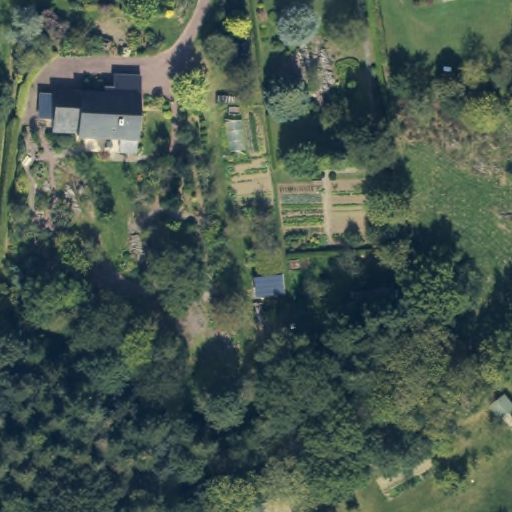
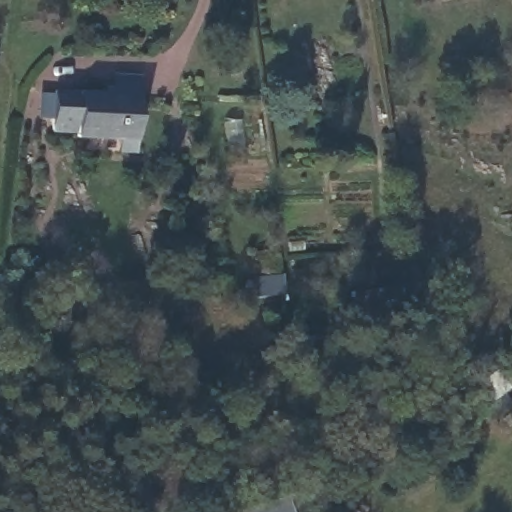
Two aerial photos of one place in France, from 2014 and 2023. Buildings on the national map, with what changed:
unchanged [(75,130),(51,129),(54,92),(99,96),(100,87),(110,88),(111,74),(141,76),(137,132),(136,141),(75,136),(75,130)]
unchanged [(512,411),(500,420),(491,408),(505,397),(512,406),(512,411)]
unchanged [(243,507),(288,493),(294,512),(229,512),(243,507)]

